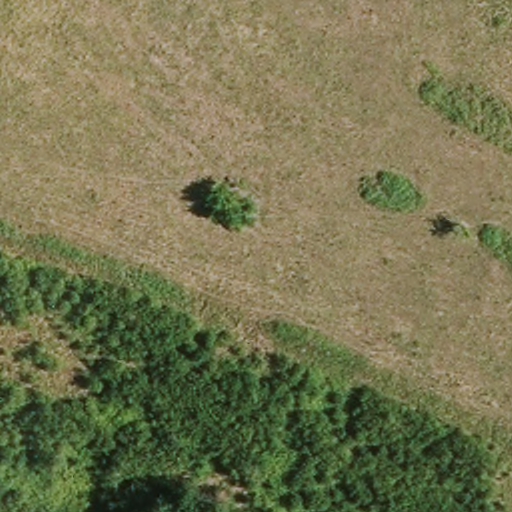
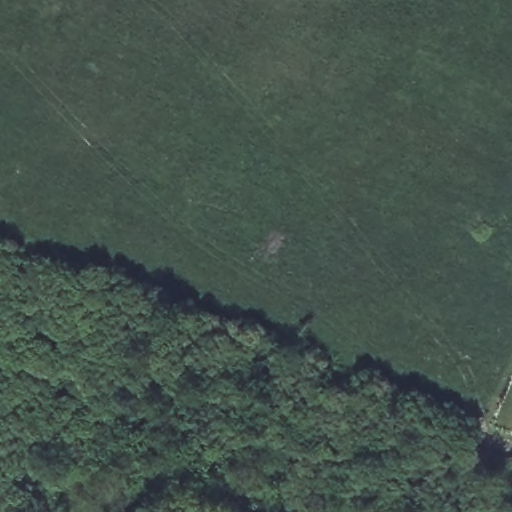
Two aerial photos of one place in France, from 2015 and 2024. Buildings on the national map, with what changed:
[]

